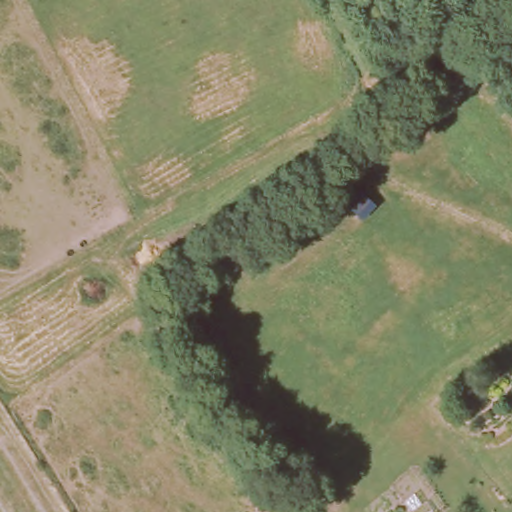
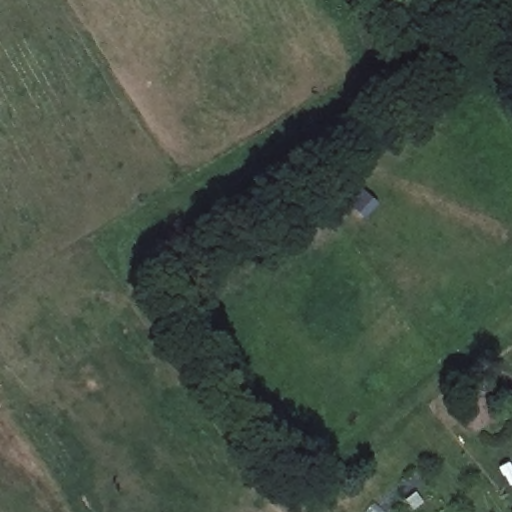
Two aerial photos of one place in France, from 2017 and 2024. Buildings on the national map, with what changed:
unchanged [(191,186),(199,200),(167,218),(160,204),(191,186)]
unchanged [(369,512),(362,512),(357,505),(376,491),(383,502),(369,512)]

